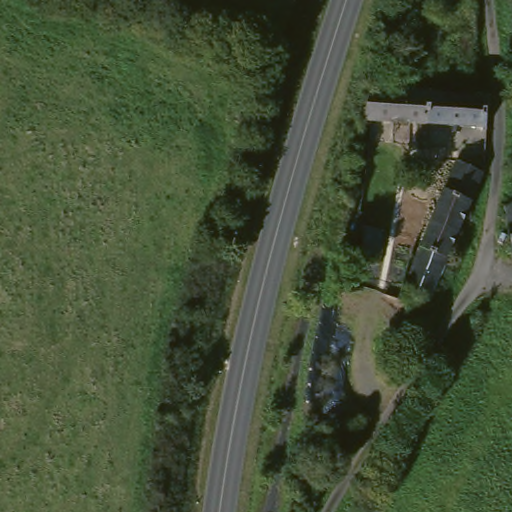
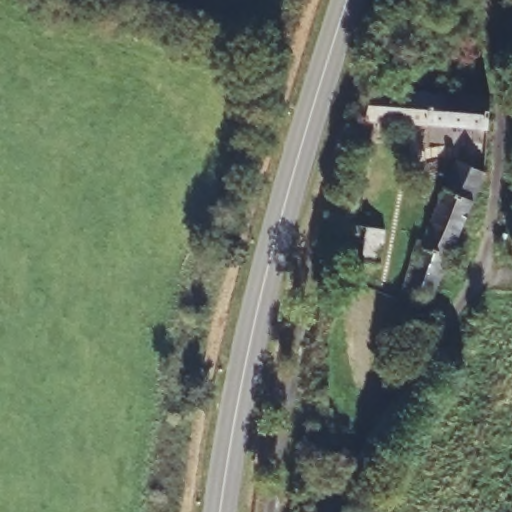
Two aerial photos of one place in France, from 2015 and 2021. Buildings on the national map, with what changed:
unchanged [(400,19),(379,15),(384,0),(405,0),(400,19)]
unchanged [(458,16),(484,18),(487,37),(484,78),(454,75),(458,16)]
unchanged [(376,126),(384,93),(412,95),(451,97),(454,75),(484,78),(483,101),(501,103),(498,135),(376,126)]
unchanged [(434,290),(424,315),(406,308),(413,295),(404,289),(458,166),(484,177),(434,290)]
unchanged [(346,198),(348,191),(374,192),(374,202),(386,203),(383,265),(342,263),(346,198)]
unchanged [(510,259),(504,212),(512,211),(512,259),(510,259)]
unchanged [(355,512),(336,512),(338,507),(355,512)]

